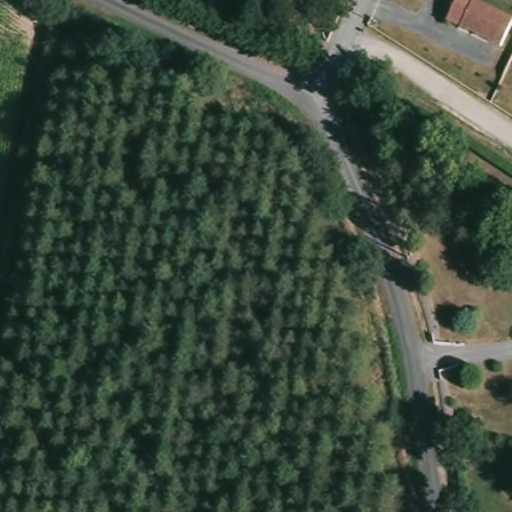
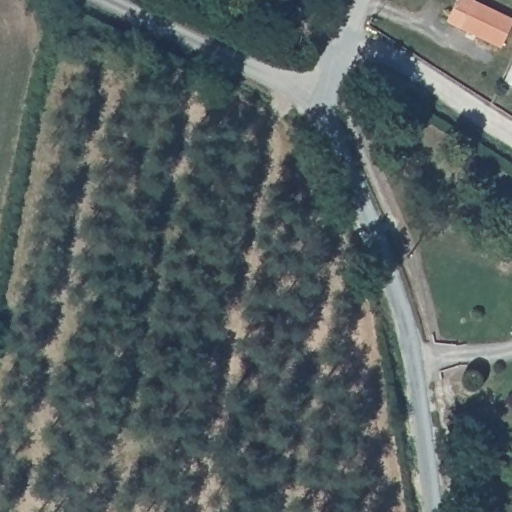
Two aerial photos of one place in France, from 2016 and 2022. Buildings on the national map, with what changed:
unchanged [(512,18),(512,26),(502,47),(447,21),(457,0),(472,0),(512,18)]

